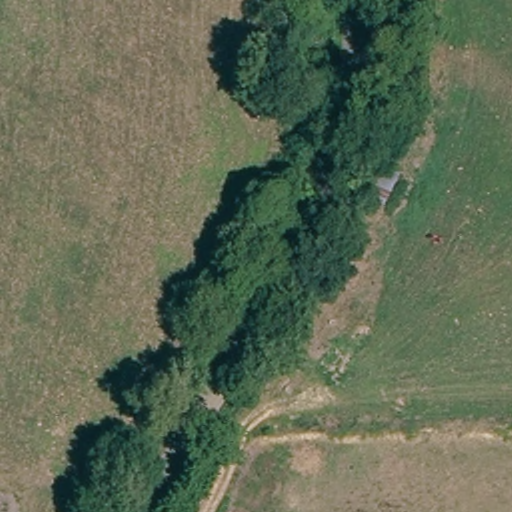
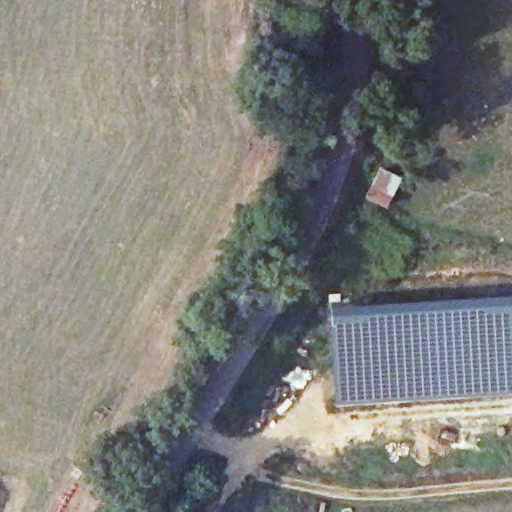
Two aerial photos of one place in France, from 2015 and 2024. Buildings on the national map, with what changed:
new [(329,310),(509,300),(512,333),(512,393),(336,404),(329,310)]

